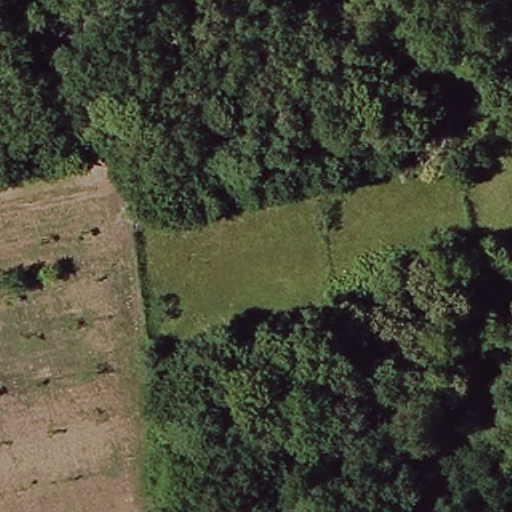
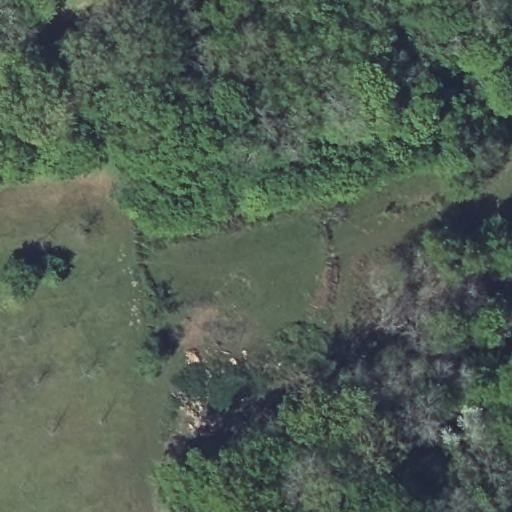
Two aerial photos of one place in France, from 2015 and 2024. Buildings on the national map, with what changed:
[]

